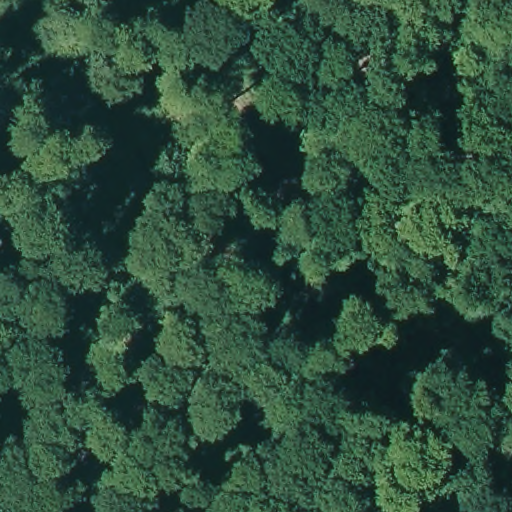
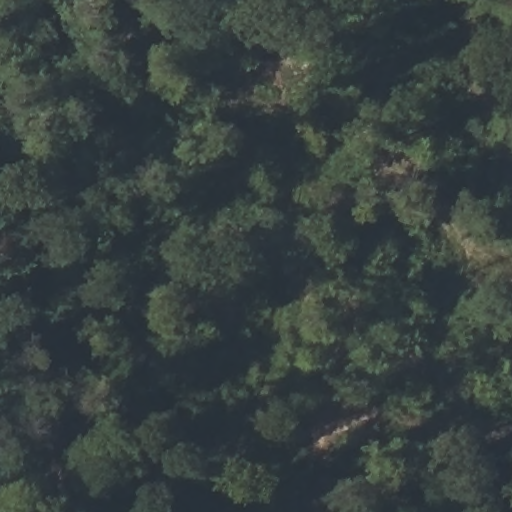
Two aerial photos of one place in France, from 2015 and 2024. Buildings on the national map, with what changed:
[]

